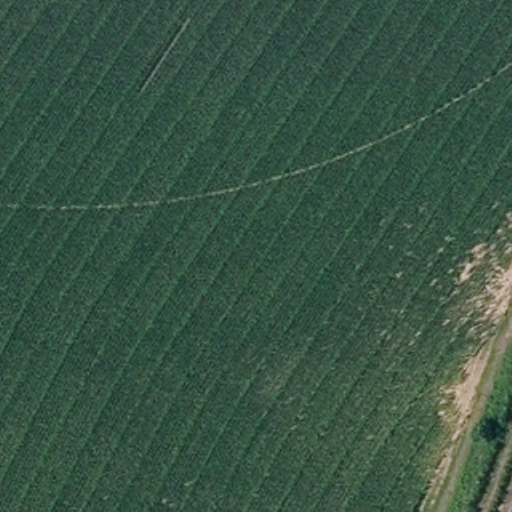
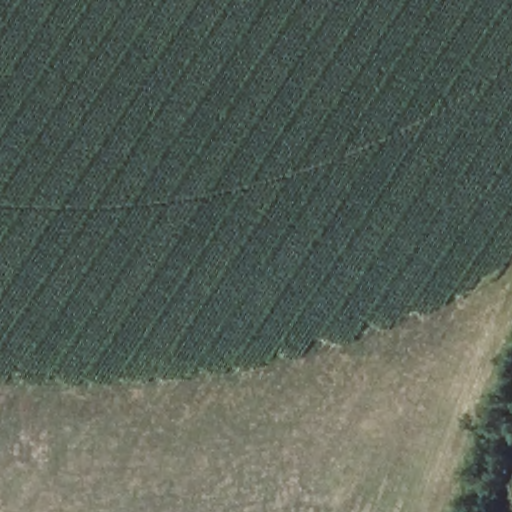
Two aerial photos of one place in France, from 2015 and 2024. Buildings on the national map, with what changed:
[]

